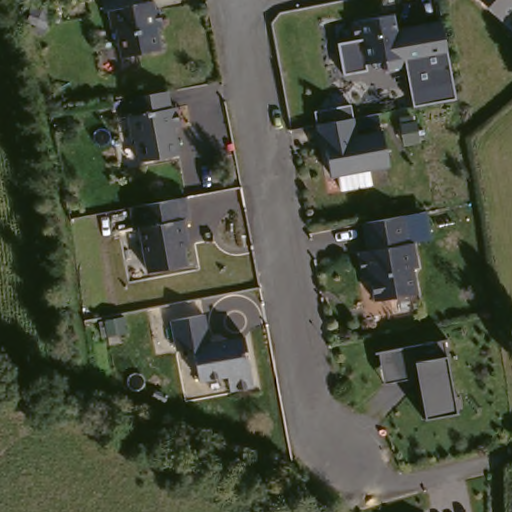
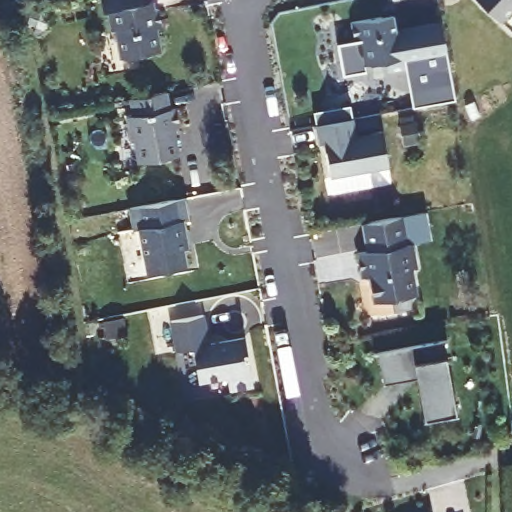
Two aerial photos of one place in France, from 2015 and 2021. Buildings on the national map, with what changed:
unchanged [(158,11),(163,30),(157,31),(162,55),(120,63),(115,33),(109,34),(106,14),(101,15),(99,0),(139,0),(141,15),(158,11)]
unchanged [(472,0),(512,0),(512,6),(495,22),(472,0)]
unchanged [(368,74),(342,78),(336,44),(353,40),(350,22),(380,17),(381,22),(392,20),(394,31),(415,26),(422,60),(404,65),(405,68),(386,71),(384,61),(363,66),(366,65),(368,74)]
unchanged [(442,20),(457,100),(412,109),(405,68),(404,65),(422,60),(415,26),(442,20)]
unchanged [(166,89),(169,105),(175,104),(177,124),(172,125),(175,151),(134,157),(132,134),(129,135),(125,110),(132,110),(129,96),(166,89)]
unchanged [(341,192),(338,176),(328,177),(323,144),(318,145),(314,125),(351,119),(354,137),(380,132),(387,168),(368,171),(371,187),(341,192)]
unchanged [(185,204),(189,227),(184,228),(187,244),(182,245),(187,271),(147,279),(139,234),(133,235),(128,215),(185,204)]
unchanged [(400,216),(405,244),(410,243),(415,267),(409,268),(414,294),(373,302),(368,276),(360,277),(356,254),(366,251),(361,224),(400,216)]
unchanged [(202,316),(206,345),(242,338),(252,388),(228,392),(226,378),(197,383),(192,349),(175,352),(170,322),(202,316)]
unchanged [(460,414),(428,420),(421,377),(387,383),(382,352),(398,350),(446,340),(460,414)]

